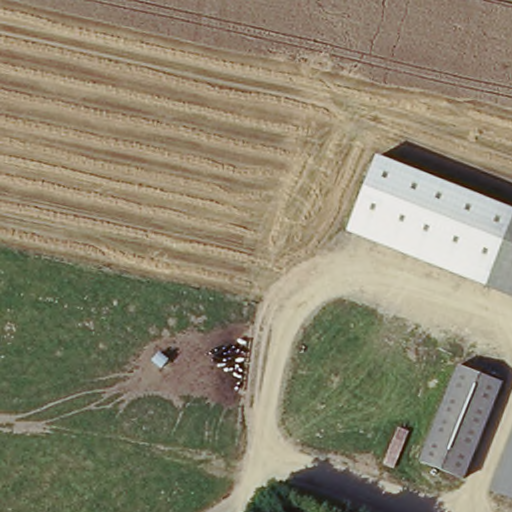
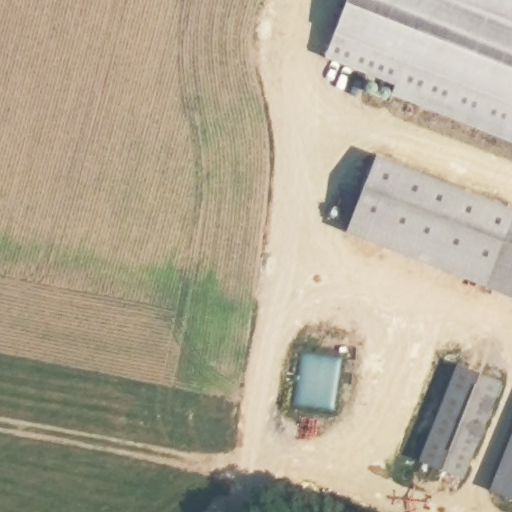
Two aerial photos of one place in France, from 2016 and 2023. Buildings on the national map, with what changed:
new [(323,61),(347,0),(512,0),(512,141),(323,61)]
unchanged [(347,232),(376,155),(512,210),(512,216),(485,286),(347,232)]
unchanged [(485,286),(512,216),(512,296),(485,286)]
unchanged [(503,379),(467,478),(423,460),(460,364),(503,379)]
unchanged [(485,494),(512,421),(512,504),(485,494)]

